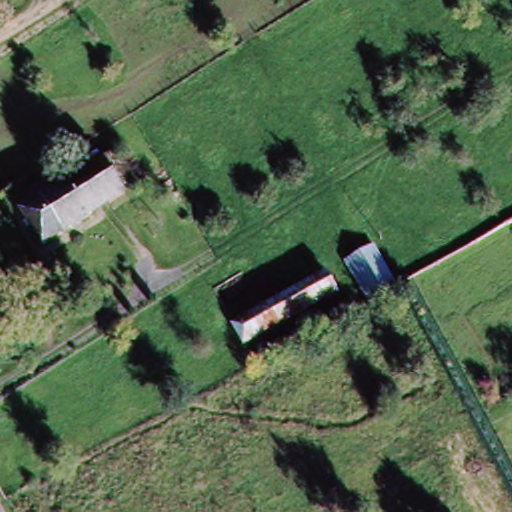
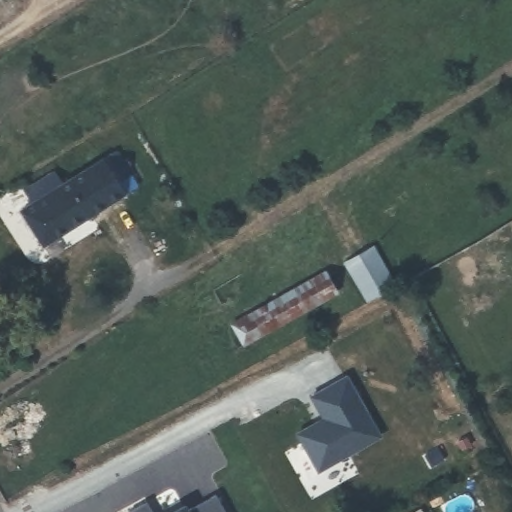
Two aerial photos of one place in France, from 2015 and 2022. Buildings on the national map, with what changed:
unchanged [(115,172),(125,166),(140,188),(36,255),(13,220),(25,212),(17,200),(47,182),(55,194),(110,161),(115,172)]
unchanged [(396,289),(372,303),(348,265),(373,252),(396,289)]
unchanged [(293,274),(295,276),(318,262),(328,282),(237,333),(225,312),(293,274)]
unchanged [(328,282),(337,298),(245,348),(237,333),(328,282)]
new [(347,376),(380,436),(319,468),(300,432),(326,418),(313,395),(347,376)]
new [(192,505),(195,512),(223,496),(232,512),(178,512),(192,505)]
new [(155,502),(160,512),(135,512),(155,502)]

